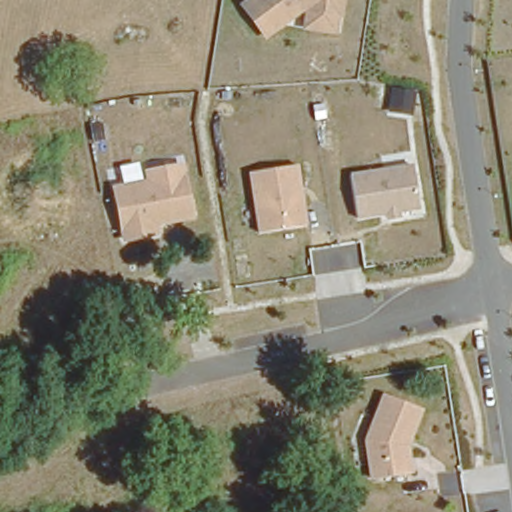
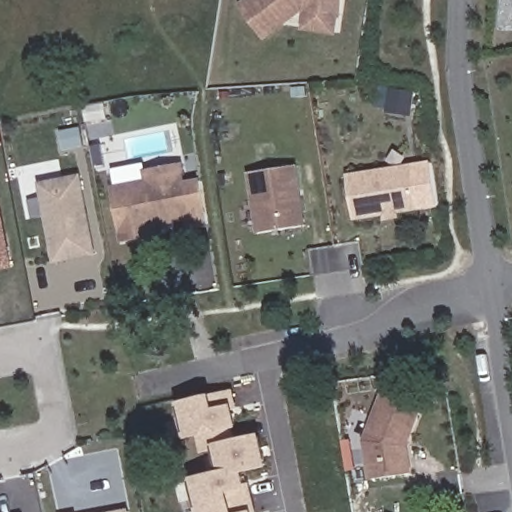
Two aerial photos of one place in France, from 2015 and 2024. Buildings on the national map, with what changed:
unchanged [(346,0),(338,38),(300,32),(302,16),(264,43),(238,6),(246,0),(346,0)]
new [(4,145),(0,146),(0,127),(4,145)]
unchanged [(198,220),(161,226),(162,237),(121,244),(113,185),(145,180),(143,170),(188,162),(198,220)]
unchanged [(421,212),(358,221),(351,174),(415,162),(421,212)]
unchanged [(310,227),(260,234),(251,173),(301,166),(310,227)]
new [(82,173),(97,255),(54,263),(39,182),(82,173)]
new [(14,267),(0,270),(0,197),(14,267)]
new [(195,480),(225,473),(218,446),(205,449),(205,433),(189,436),(182,404),(209,398),(234,394),(236,407),(232,407),(235,424),(239,441),(259,437),(265,464),(241,470),(245,485),(249,484),(256,512),(202,512),(195,480)]
unchanged [(411,444),(415,475),(369,479),(364,443),(383,394),(426,409),(411,444)]
new [(130,508),(130,512),(105,512),(130,508)]

